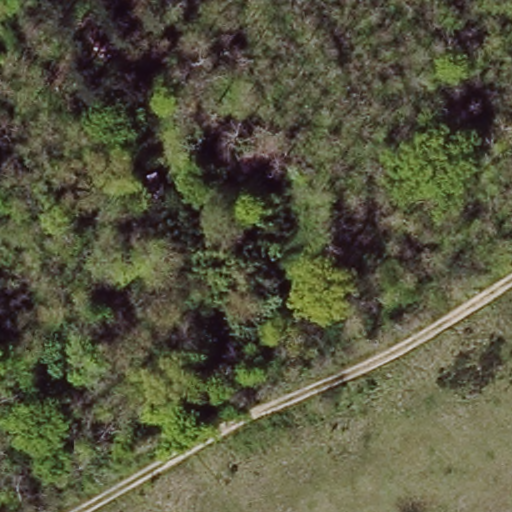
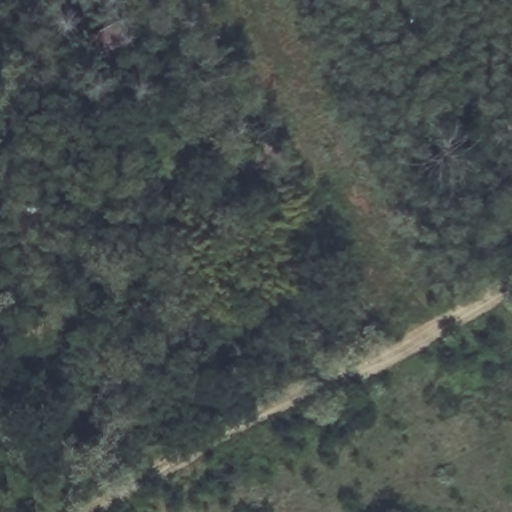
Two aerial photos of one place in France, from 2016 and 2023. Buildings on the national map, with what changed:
unchanged [(103,65),(90,36),(119,22),(135,50),(103,65)]
unchanged [(65,69),(41,85),(32,73),(55,56),(65,69)]
unchanged [(284,162),(242,179),(231,150),(272,134),(284,162)]

